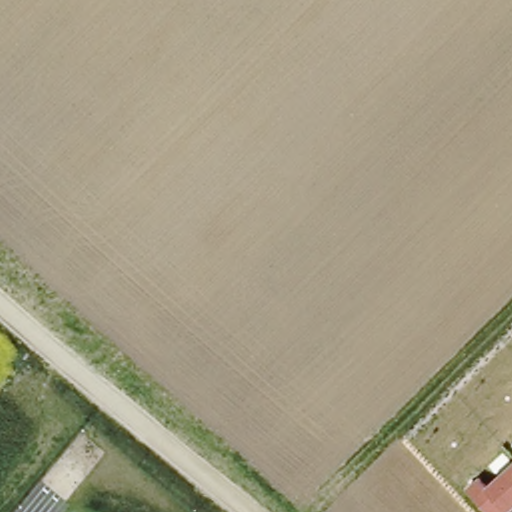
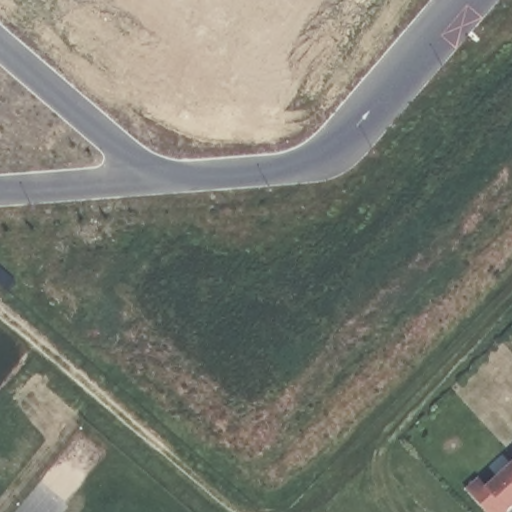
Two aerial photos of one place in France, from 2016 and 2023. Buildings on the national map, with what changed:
unchanged [(467,487),(478,477),(487,487),(512,463),(512,508),(507,512),(489,512),(467,487)]

